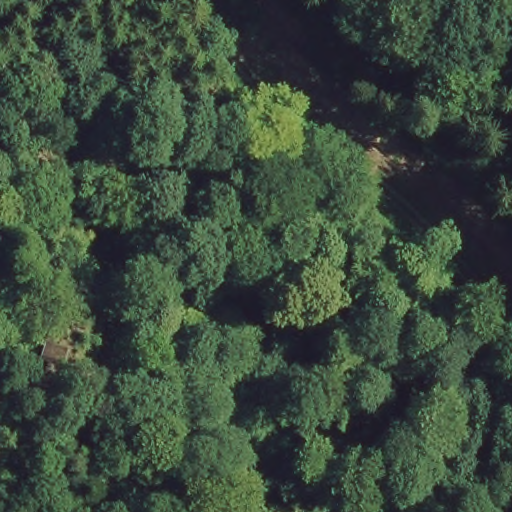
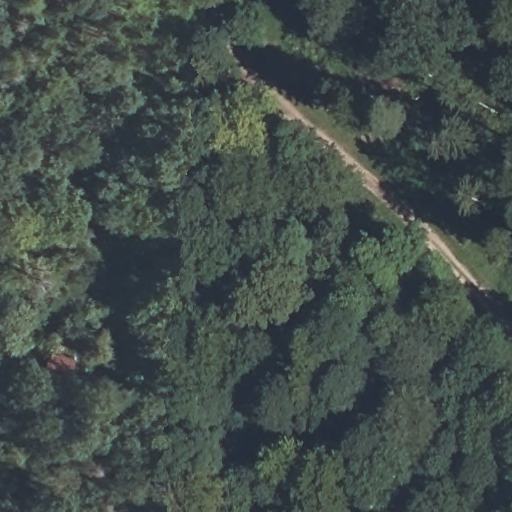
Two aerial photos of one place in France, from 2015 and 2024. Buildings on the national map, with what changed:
unchanged [(67,341),(70,362),(42,365),(40,344),(67,341)]

